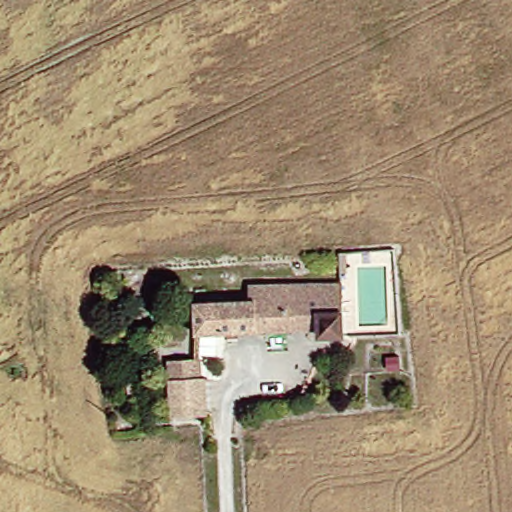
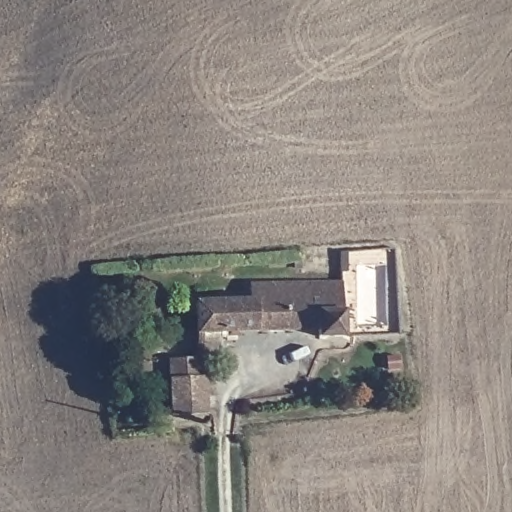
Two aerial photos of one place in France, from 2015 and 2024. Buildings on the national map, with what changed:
unchanged [(257,305),(257,288),(349,287),(350,341),(326,341),(326,333),(204,337),(203,305),(257,305)]
unchanged [(204,382),(204,420),(171,421),(169,383),(204,382)]

